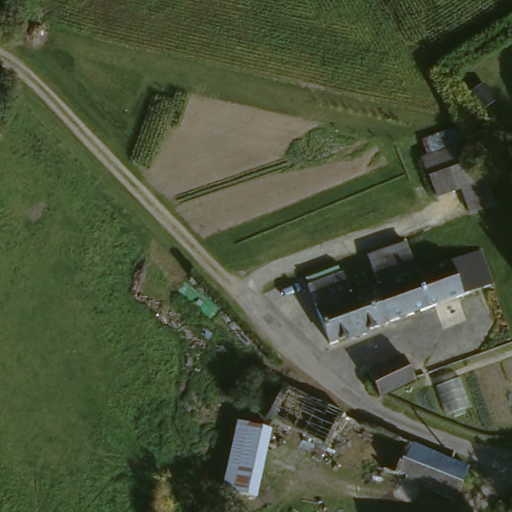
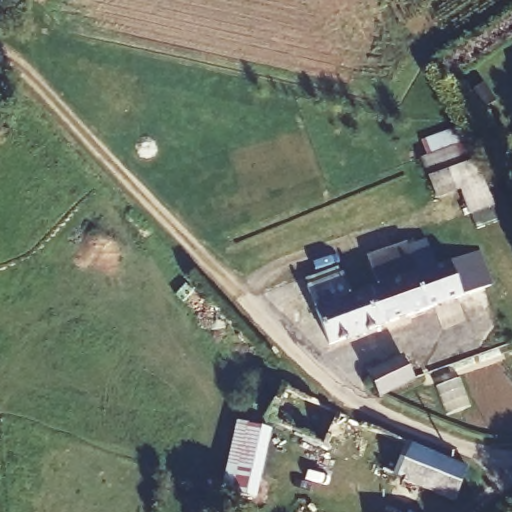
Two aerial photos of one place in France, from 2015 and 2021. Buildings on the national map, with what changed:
unchanged [(415,170),(449,159),(467,154),(473,171),(454,177),(420,188),(415,170)]
unchanged [(507,278),(382,325),(368,289),(408,273),(495,244),(505,270),(507,278)]
unchanged [(336,342),(332,343),(313,294),(310,285),(345,272),(347,281),(353,295),(368,289),(382,325),(336,342)]
unchanged [(420,375),(387,388),(390,394),(385,395),(371,366),(395,355),(408,349),(420,375)]
unchanged [(335,448),(270,419),(286,384),(351,414),(335,448)]
unchanged [(275,431),(258,502),(225,491),(243,421),(275,431)]
unchanged [(458,500),(396,475),(410,438),(471,464),(458,500)]

